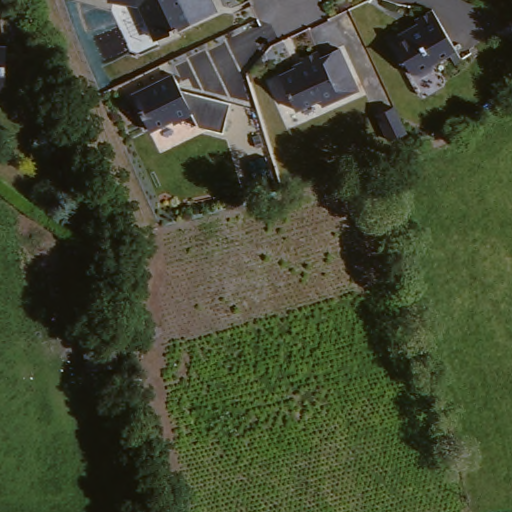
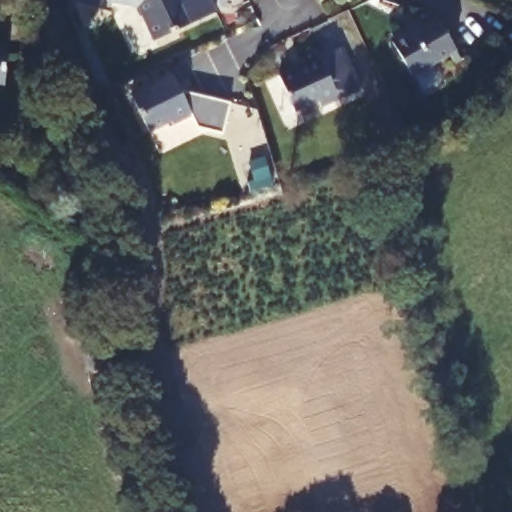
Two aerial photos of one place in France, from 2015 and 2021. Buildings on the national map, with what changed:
unchanged [(102,7),(102,0),(182,0),(193,25),(149,44),(136,12),(102,7)]
unchanged [(455,55),(414,81),(386,37),(428,12),(455,55)]
unchanged [(5,45),(4,87),(0,87),(0,45),(5,45)]
unchanged [(277,72),(335,46),(355,85),(297,114),(277,72)]
unchanged [(175,72),(187,97),(198,92),(232,100),(225,131),(200,125),(194,111),(174,121),(172,117),(150,129),(133,92),(175,72)]

